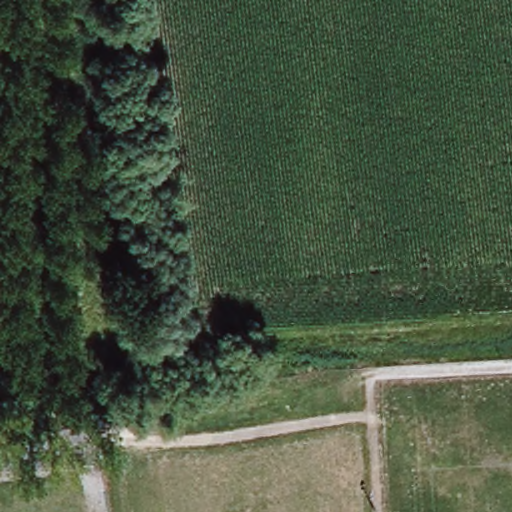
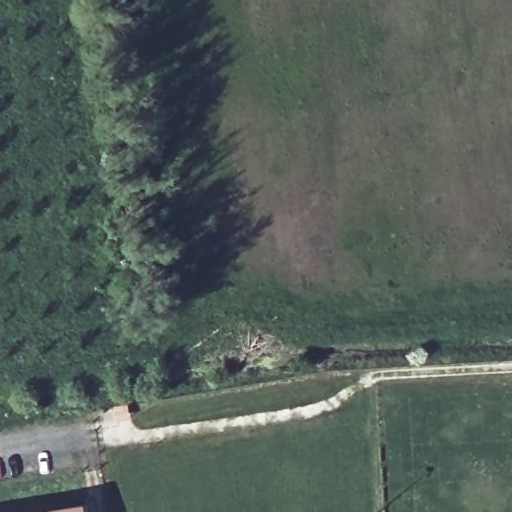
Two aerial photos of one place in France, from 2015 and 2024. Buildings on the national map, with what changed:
new [(89,512),(38,512),(87,504),(89,512)]

